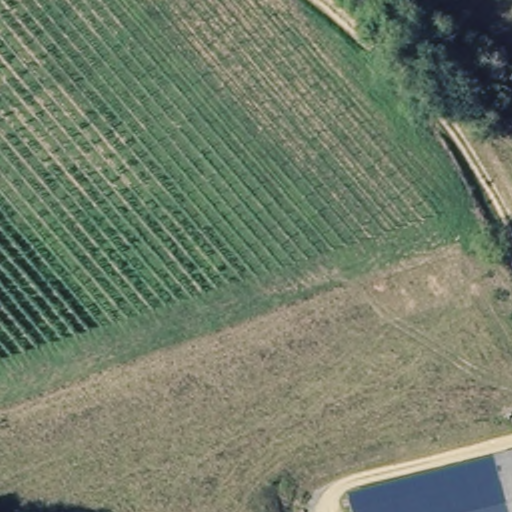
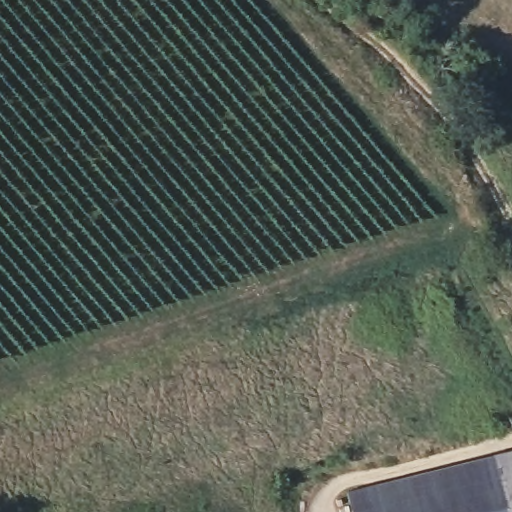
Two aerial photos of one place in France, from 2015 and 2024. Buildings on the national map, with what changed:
unchanged [(512,452),(512,512),(348,512),(346,503),(512,452)]

